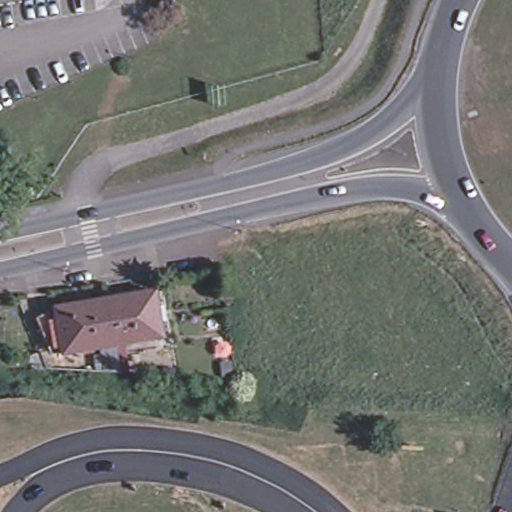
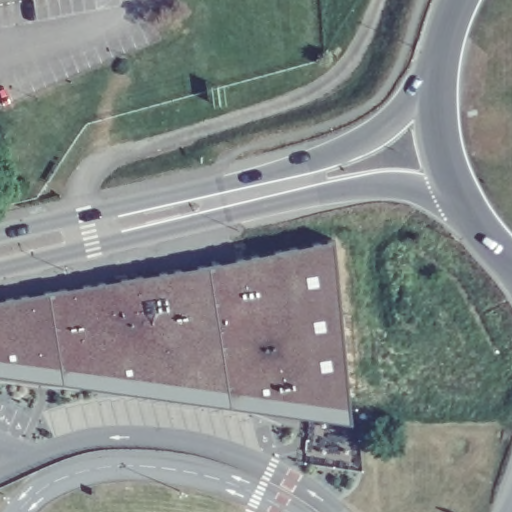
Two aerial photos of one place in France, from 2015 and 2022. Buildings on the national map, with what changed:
new [(350,425),(0,375),(0,302),(337,240),(350,425)]
demolished [(105,300),(155,294),(160,340),(110,346),(105,300)]
demolished [(54,306),(53,305),(105,300),(110,346),(58,351),(58,344),(44,346),(35,313),(54,306)]

